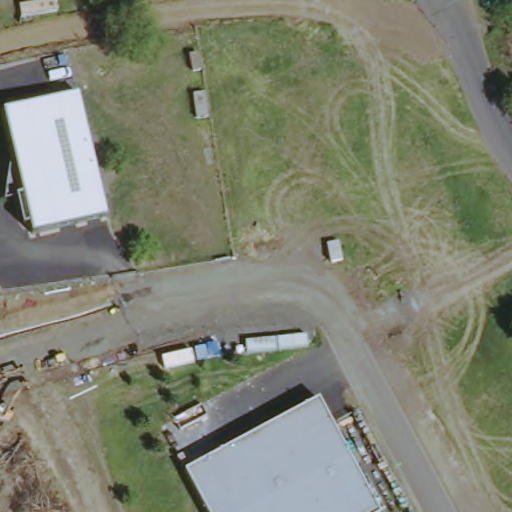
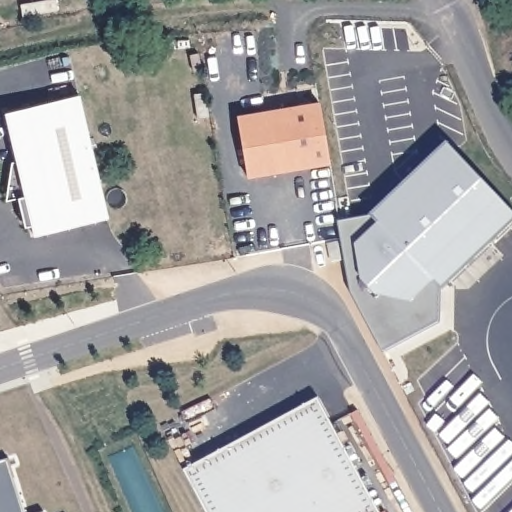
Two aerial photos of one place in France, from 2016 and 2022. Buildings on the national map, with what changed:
unchanged [(109,219),(35,236),(7,112),(81,94),(109,219)]
new [(312,105),(322,164),(241,177),(231,120),(312,105)]
new [(368,216),(443,146),(512,219),(512,220),(436,292),(434,289),(428,295),(428,305),(436,313),(436,324),(380,355),(347,293),(335,222),(368,216)]
unchanged [(330,400),(379,512),(213,512),(191,462),(330,400)]
new [(22,512),(0,512),(0,461),(6,459),(22,512)]

